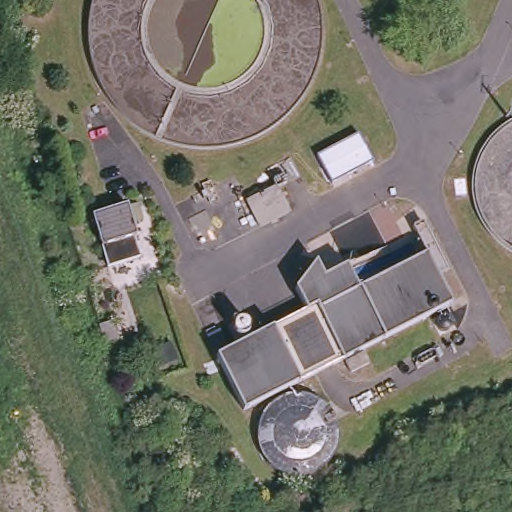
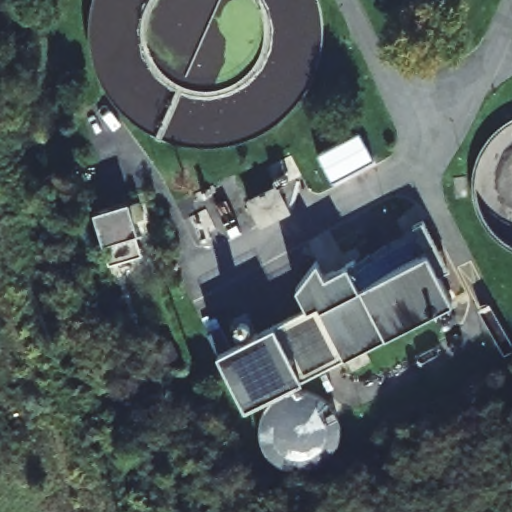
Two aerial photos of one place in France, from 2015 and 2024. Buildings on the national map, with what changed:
unchanged [(362,130),(375,156),(326,177),(315,153),(362,130)]
unchanged [(292,156),(301,175),(288,181),(285,175),(271,181),(286,211),(258,224),(244,195),(245,194),(238,181),(292,156)]
unchanged [(131,195),(140,219),(127,223),(136,252),(102,262),(87,208),(131,195)]
unchanged [(308,311),(298,290),(316,256),(326,277),(360,261),(364,269),(425,242),(456,309),(245,409),(219,353),(308,311)]
unchanged [(298,403),(306,404),(313,406),(320,409),(325,413),(331,418),(331,419),(335,426),(337,433),(338,440),(338,448),(336,455),(333,461),(328,467),(322,472),(318,475),(311,478),(305,480),(297,480),(290,479),(285,478),(279,475),(273,471),(269,466),(265,460),(263,454),(262,450),(261,443),(261,436),(262,430),(265,424),(269,418),(275,412),(281,408),(288,405),(291,404),(298,403)]

